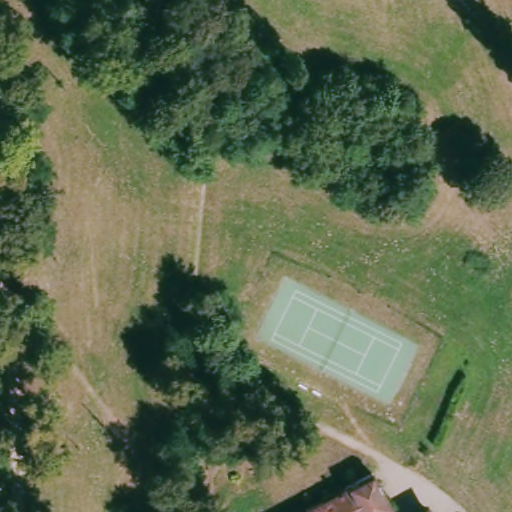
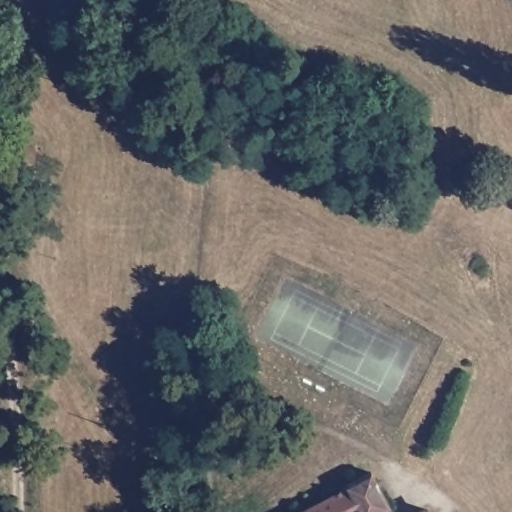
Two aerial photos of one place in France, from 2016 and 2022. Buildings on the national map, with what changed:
unchanged [(345,492),(344,487),(373,473),(391,509),(392,510),(387,512),(305,512),(345,492)]

